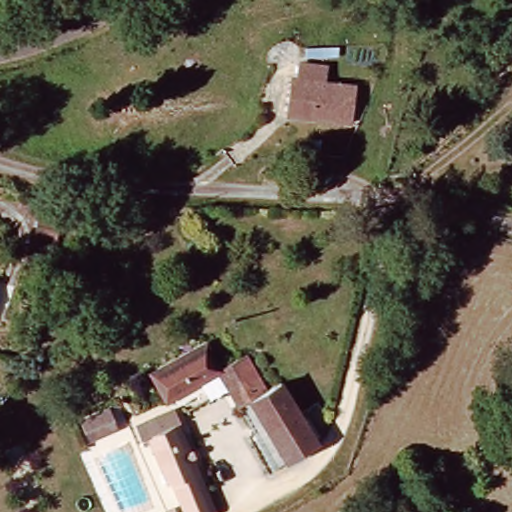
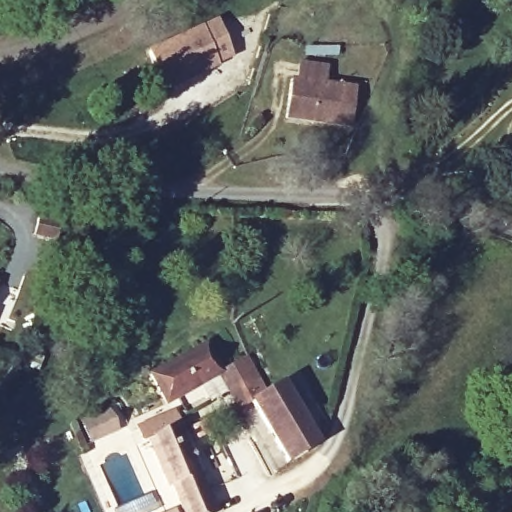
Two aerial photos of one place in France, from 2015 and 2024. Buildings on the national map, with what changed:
new [(149,50),(216,18),(234,55),(167,90),(149,50)]
unchanged [(292,79),(357,90),(352,125),(286,115),(292,79)]
unchanged [(27,225),(31,213),(35,205),(54,210),(52,220),(50,230),(27,225)]
unchanged [(247,400),(234,406),(215,375),(162,402),(146,375),(202,346),(217,372),(244,357),(264,393),(282,382),(319,447),(286,467),(247,400)]
unchanged [(85,442),(77,425),(105,413),(112,431),(85,442)]
unchanged [(165,494),(144,450),(128,450),(130,435),(135,433),(171,418),(218,512),(180,512),(170,491),(165,494)]

